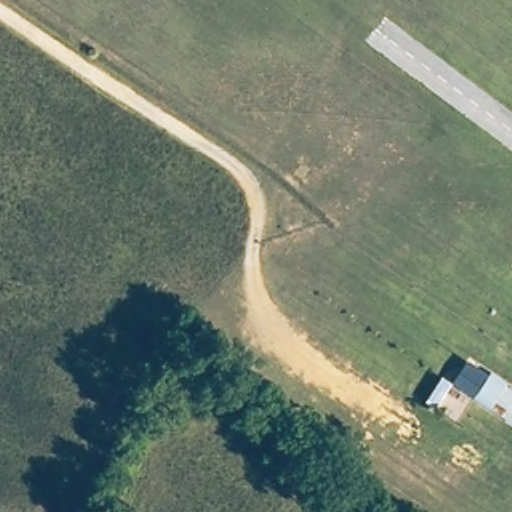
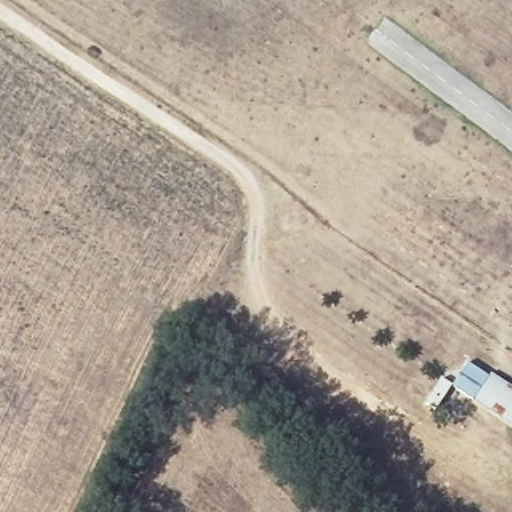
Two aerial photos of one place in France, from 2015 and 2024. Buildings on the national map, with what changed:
unchanged [(485,380),(490,374),(512,390),(512,425),(450,387),(465,365),(485,380)]

